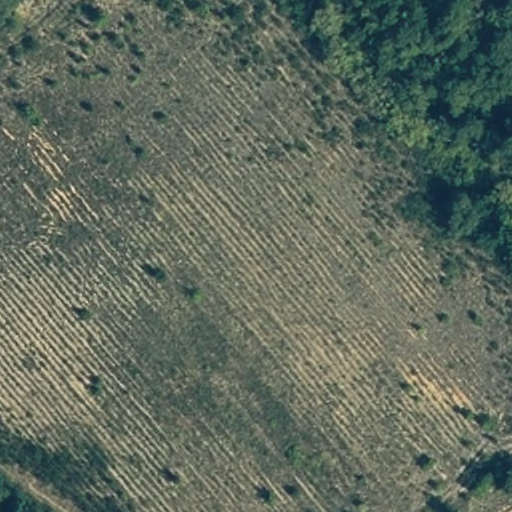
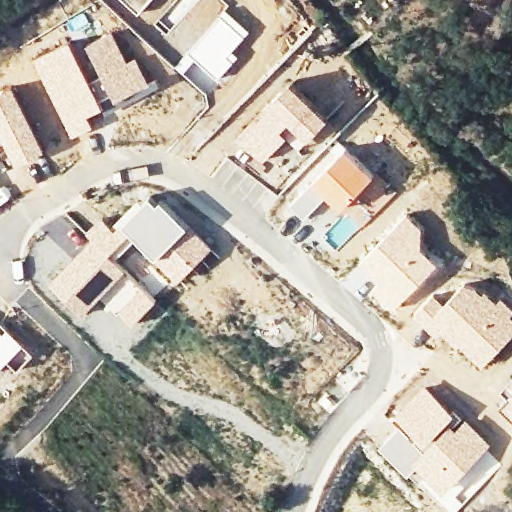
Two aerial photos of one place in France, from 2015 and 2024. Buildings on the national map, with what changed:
new [(225,9),(184,58),(135,16),(118,0),(224,0),(229,4),(225,9)]
new [(225,9),(250,29),(232,50),(239,56),(215,82),(192,61),(190,64),(184,58),(225,9)]
new [(112,31),(127,60),(135,56),(150,84),(114,102),(85,46),(112,31)]
new [(70,42),(104,108),(89,116),(94,126),(72,138),(32,61),(70,42)]
new [(289,79),(330,116),(300,148),(288,135),(264,161),(234,137),(289,79)]
new [(12,85),(47,149),(17,165),(5,144),(0,135),(0,91),(12,85)]
new [(5,144),(0,146),(0,135),(5,144)]
new [(345,146),(376,174),(342,209),(327,196),(302,222),(285,206),(345,146)]
new [(102,217),(111,226),(149,193),(157,201),(160,198),(189,224),(154,258),(137,239),(117,260),(90,239),(85,233),(102,217)]
new [(407,212),(422,227),(422,247),(438,263),(392,310),(370,287),(375,282),(357,264),(407,212)]
new [(189,224),(213,247),(177,282),(154,258),(189,224)]
new [(90,239),(117,260),(128,271),(82,314),(49,283),(90,239)]
new [(131,274),(138,281),(150,269),(167,286),(133,324),(106,300),(131,274)]
new [(443,303),(468,278),(496,301),(501,296),(512,307),(512,314),(512,335),(482,368),(440,333),(436,337),(412,315),(432,293),(443,303)]
new [(500,388),(512,375),(512,418),(497,403),(505,395),(500,388)]
new [(425,383),(457,412),(452,418),(424,448),(400,423),(393,415),(425,383)]
new [(424,448),(452,418),(456,423),(462,416),(492,444),(488,449),(439,495),(417,469),(415,467),(417,466),(412,462),(424,448)]
new [(400,423),(424,448),(412,462),(417,466),(415,467),(417,469),(408,477),(377,447),(400,423)]
new [(488,449),(502,464),(454,512),(453,512),(439,495),(488,449)]

